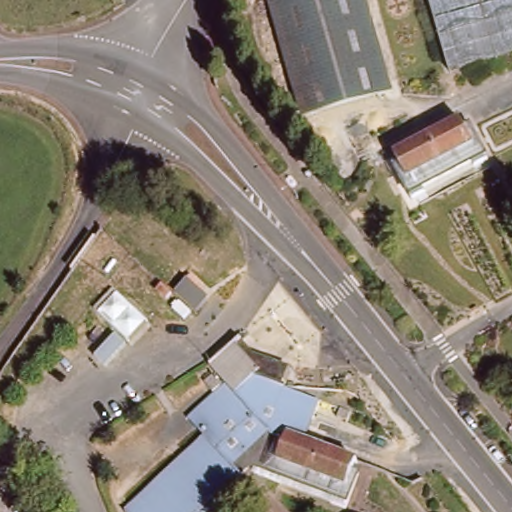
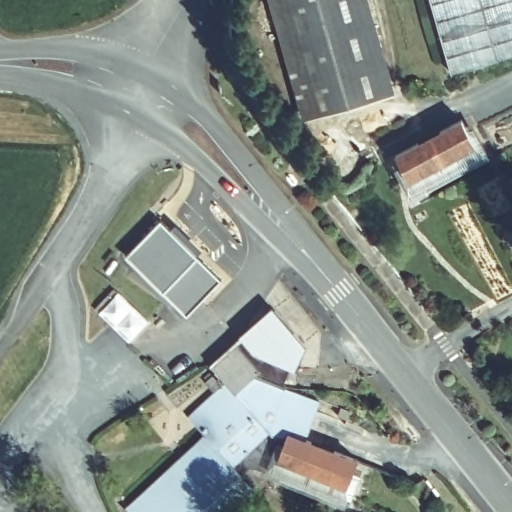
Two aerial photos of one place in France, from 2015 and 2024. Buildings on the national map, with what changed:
unchanged [(300,119),(267,0),(367,0),(392,91),(300,119)]
unchanged [(494,0),(436,16),(431,0),(494,0)]
unchanged [(494,0),(512,0),(512,52),(451,69),(436,16),(494,0)]
unchanged [(392,166),(399,163),(393,151),(412,142),(414,147),(443,132),(440,127),(457,118),(463,129),(470,125),(487,159),(469,168),(465,161),(422,184),(425,190),(409,199),(392,166)]
new [(187,313),(127,257),(162,222),(222,279),(187,313)]
new [(296,369),(285,367),(286,364),(252,350),(239,338),(272,308),(307,347),(296,369)]
unchanged [(252,350),(286,364),(280,381),(278,388),(253,460),(249,459),(238,471),(193,512),(128,512),(123,508),(204,433),(184,411),(220,380),(205,362),(235,334),(252,350)]
unchanged [(207,388),(198,378),(207,372),(215,381),(207,388)]
unchanged [(310,442),(333,450),(335,445),(352,451),(348,463),(357,466),(342,503),(322,495),(325,488),(278,472),(276,478),(250,469),(253,460),(278,388),(315,400),(310,418),(304,434),(312,437),(310,442)]
unchanged [(208,512),(193,512),(238,471),(245,478),(208,512)]

